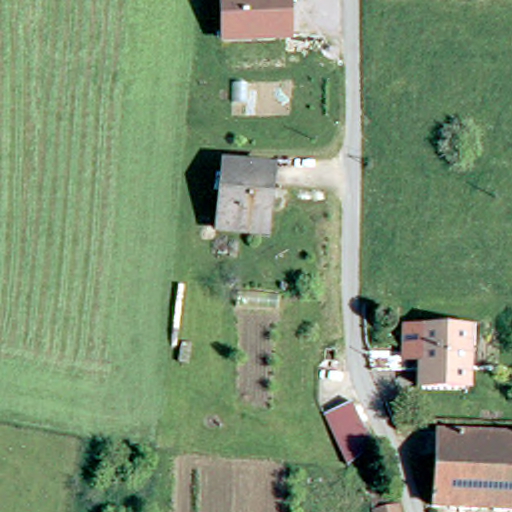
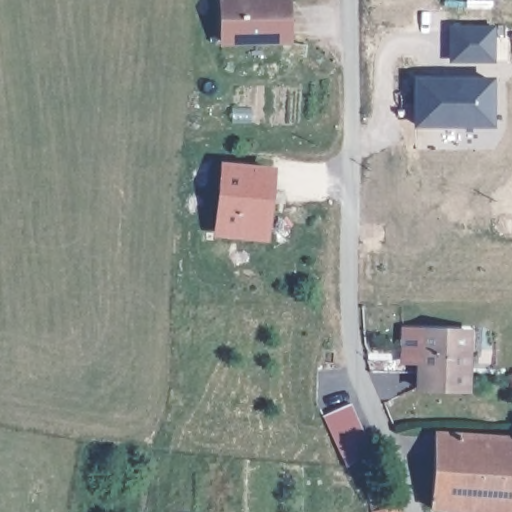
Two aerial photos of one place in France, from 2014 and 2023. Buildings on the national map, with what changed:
unchanged [(292,3),(292,42),(226,43),(226,0),(262,0),(262,4),(292,3)]
new [(452,26),(493,27),(492,60),(451,59),(452,26)]
new [(414,74),(494,76),(493,129),(413,127),(414,74)]
unchanged [(274,171),(272,210),(265,210),(264,238),(223,236),(227,169),(274,171)]
unchanged [(422,331),(468,331),(468,391),(423,390),(422,331)]
unchanged [(357,402),(380,446),(348,467),(325,419),(357,402)]
unchanged [(439,510),(444,432),(456,433),(512,438),(512,512),(465,512),(439,510)]

